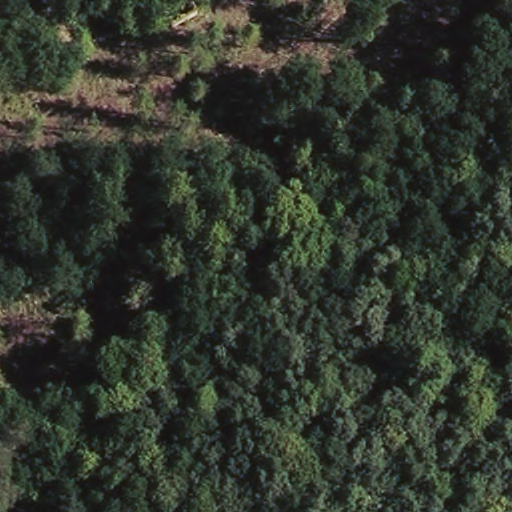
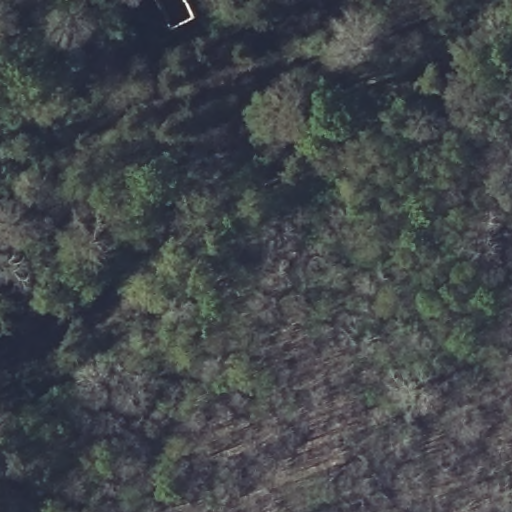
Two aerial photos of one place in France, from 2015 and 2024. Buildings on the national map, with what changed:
unchanged [(175,26),(161,0),(193,0),(200,12),(175,26)]

